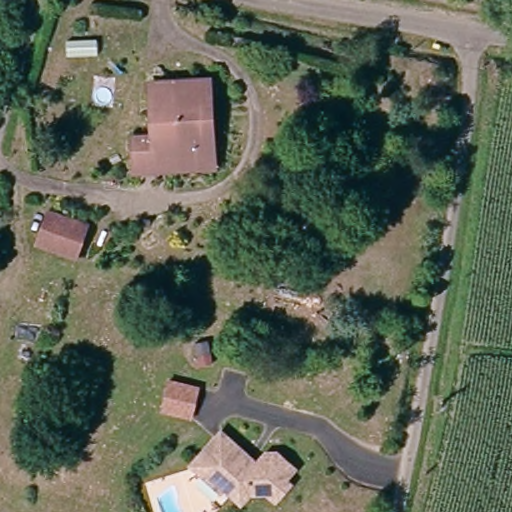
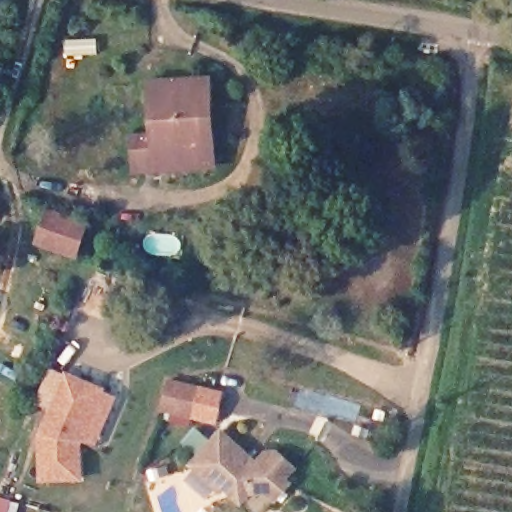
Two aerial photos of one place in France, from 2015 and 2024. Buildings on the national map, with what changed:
unchanged [(128,139),(150,137),(145,79),(205,74),(206,100),(196,101),(200,154),(155,158),(155,170),(130,173),(128,139)]
unchanged [(37,243),(47,210),(84,222),(73,254),(37,243)]
demolished [(206,338),(211,359),(195,363),(191,341),(206,338)]
new [(64,373),(66,370),(107,388),(106,392),(117,396),(96,446),(82,443),(82,481),(39,483),(37,435),(50,407),(35,403),(50,367),(64,373)]
unchanged [(169,379),(200,386),(194,415),(162,409),(169,379)]
unchanged [(240,448),(252,458),(255,460),(264,449),(275,449),(292,464),(283,475),(287,479),(274,495),(265,487),(251,489),(250,487),(240,499),(223,484),(220,488),(190,463),(219,429),(240,448)]

